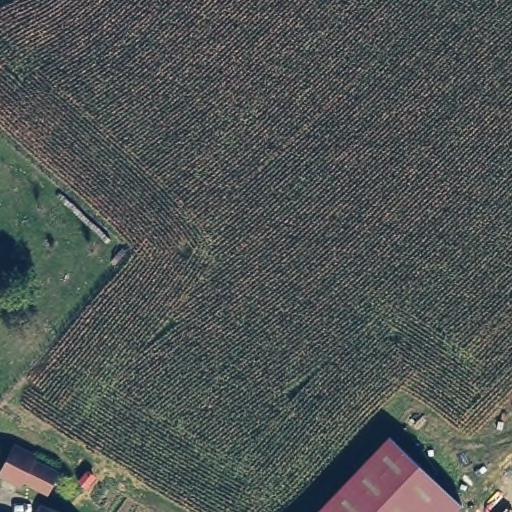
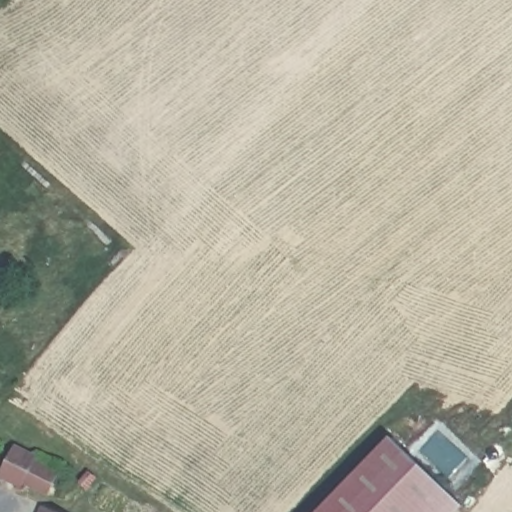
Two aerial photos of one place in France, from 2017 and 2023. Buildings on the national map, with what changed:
unchanged [(468,507),(464,512),(326,512),(396,439),(468,507)]
unchanged [(62,471),(51,496),(27,485),(23,491),(3,479),(18,446),(62,471)]

